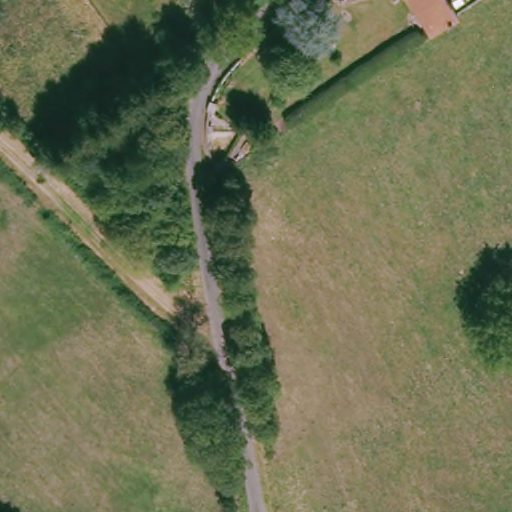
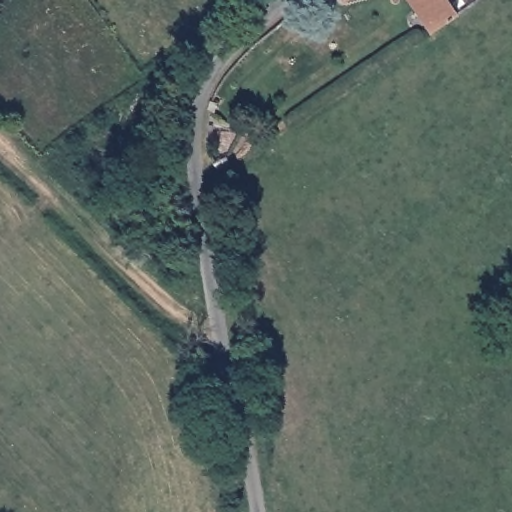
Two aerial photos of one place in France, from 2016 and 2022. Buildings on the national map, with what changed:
unchanged [(345,0),(352,0),(347,4),(345,0)]
unchanged [(447,0),(455,11),(433,28),(413,0),(447,0)]

